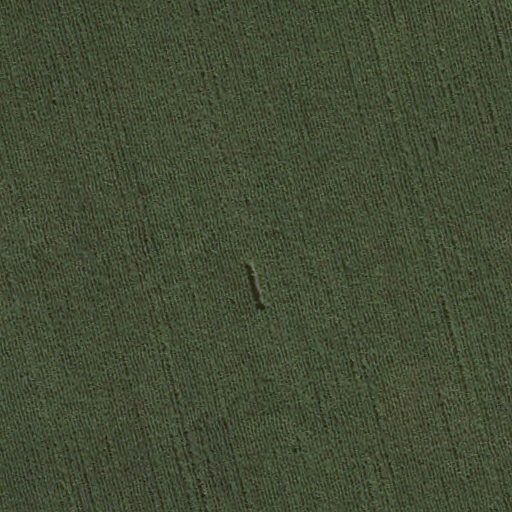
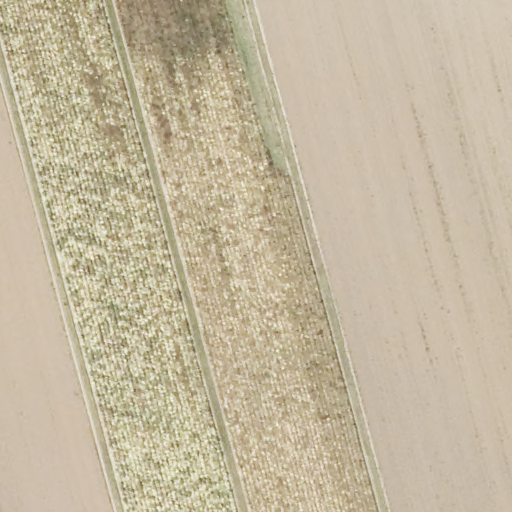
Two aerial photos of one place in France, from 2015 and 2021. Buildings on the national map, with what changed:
[]

